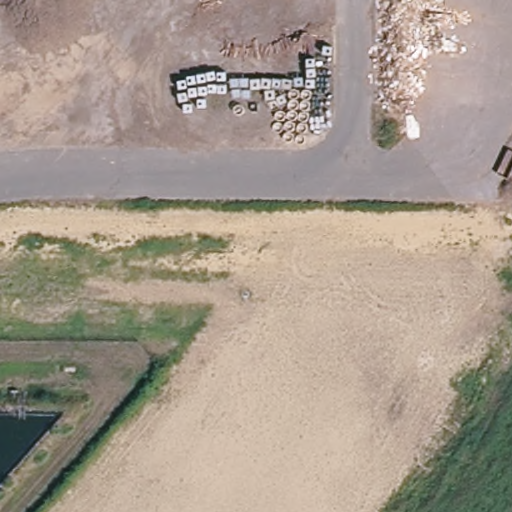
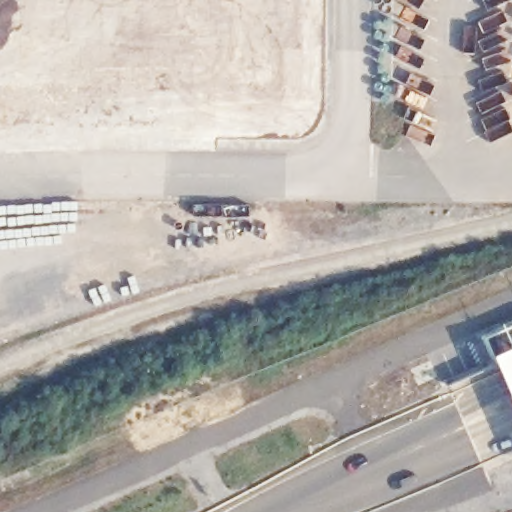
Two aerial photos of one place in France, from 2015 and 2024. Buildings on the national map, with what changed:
new [(487,335),(512,325),(512,392),(495,350),(487,335)]

